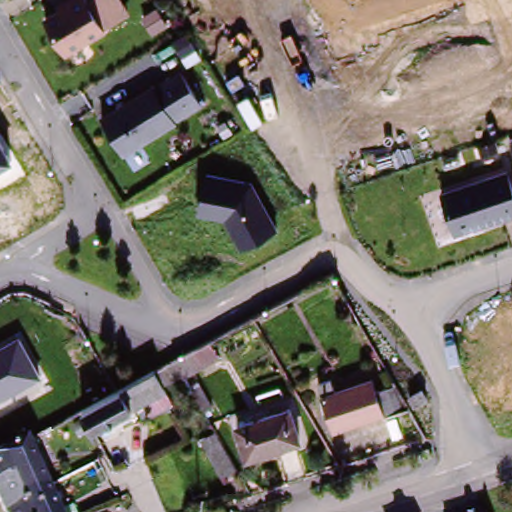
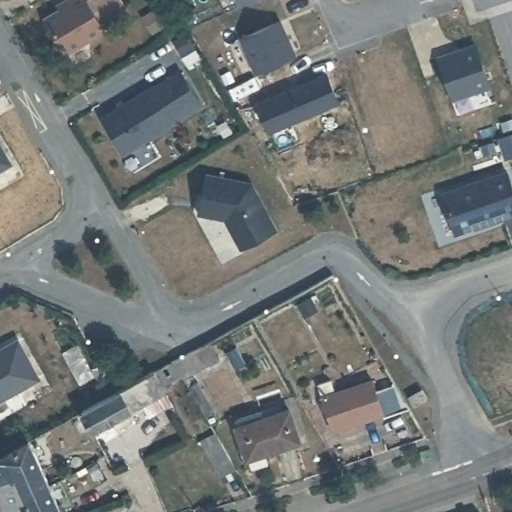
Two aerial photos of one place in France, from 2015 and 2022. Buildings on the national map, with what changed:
unchanged [(74,0),(94,0),(113,26),(69,53),(46,16),(74,0)]
new [(239,0),(248,0),(241,3),(239,0)]
new [(280,18),(296,54),(256,72),(240,36),(280,18)]
new [(475,42),(490,84),(453,96),(439,55),(475,42)]
new [(326,71),(338,99),(269,129),(257,101),(326,71)]
unchanged [(202,108),(126,156),(100,115),(153,85),(154,87),(179,72),(202,108)]
unchanged [(15,167),(0,176),(0,140),(15,167)]
unchanged [(442,192),(507,171),(512,187),(512,219),(455,236),(442,192)]
unchanged [(241,250),(225,219),(199,214),(206,174),(251,182),(276,233),(241,250)]
unchanged [(18,338),(41,380),(0,403),(0,348),(18,338)]
unchanged [(86,412),(96,407),(94,403),(127,384),(158,367),(178,356),(203,342),(213,359),(188,371),(166,382),(170,388),(105,423),(102,417),(91,422),(86,412)]
unchanged [(194,385),(210,410),(201,416),(185,392),(194,385)]
unchanged [(382,420),(380,415),(333,433),(319,389),(332,386),(337,398),(373,385),(376,394),(398,388),(410,410),(382,420)]
unchanged [(291,409),(301,443),(250,460),(240,427),(291,409)]
unchanged [(221,479),(199,443),(214,435),(235,470),(221,479)]
unchanged [(0,507),(0,456),(1,455),(5,453),(25,442),(46,488),(56,512),(2,512),(0,507)]

